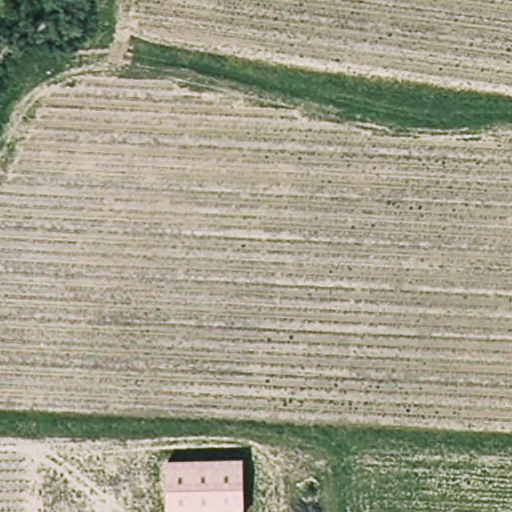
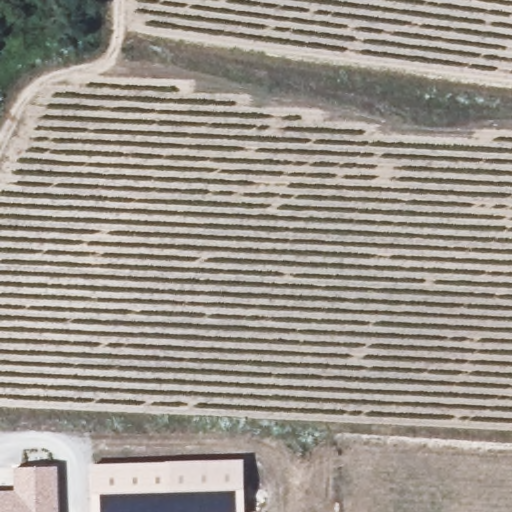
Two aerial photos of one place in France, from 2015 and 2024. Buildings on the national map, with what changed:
unchanged [(164,464),(243,461),(243,512),(165,512),(164,464)]
new [(88,467),(164,464),(165,512),(89,512),(88,467)]
new [(0,492),(12,492),(12,470),(55,467),(57,512),(0,512),(0,492)]

